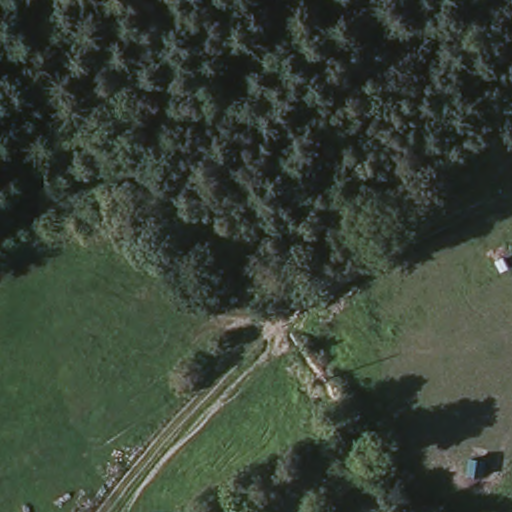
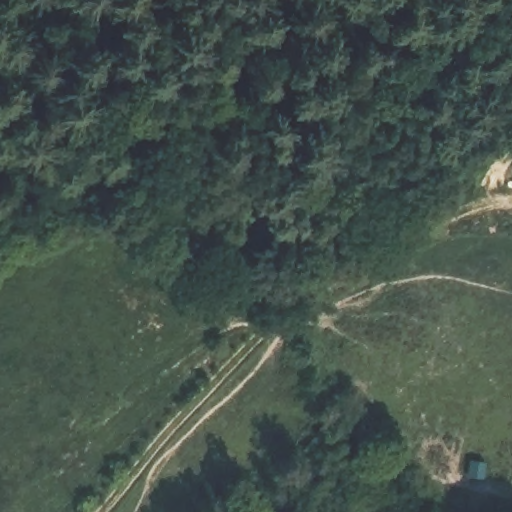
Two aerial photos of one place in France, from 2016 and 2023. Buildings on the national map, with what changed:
unchanged [(512,162),(512,196),(495,173),(512,162)]

